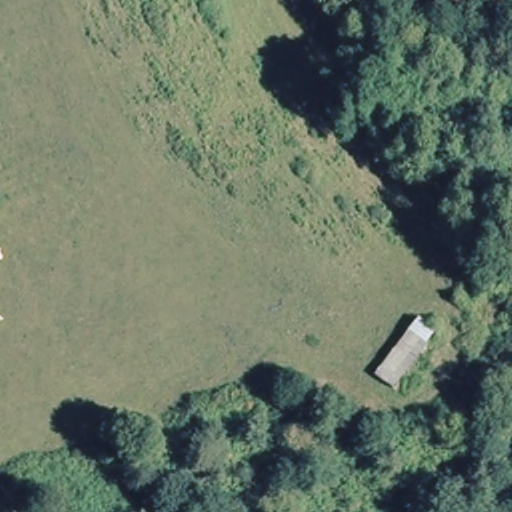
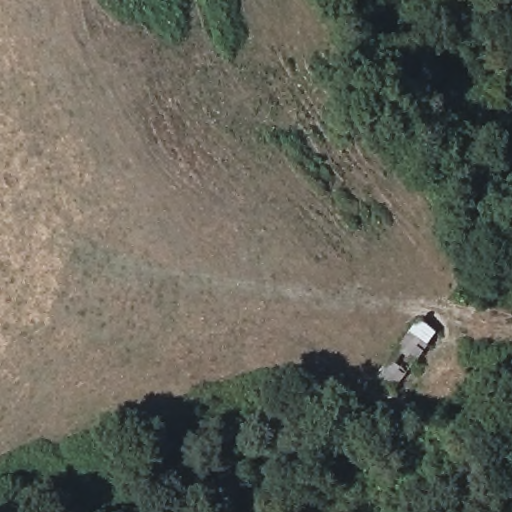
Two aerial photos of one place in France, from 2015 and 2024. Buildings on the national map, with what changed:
unchanged [(376,366),(421,313),(439,334),(401,383),(376,366)]

